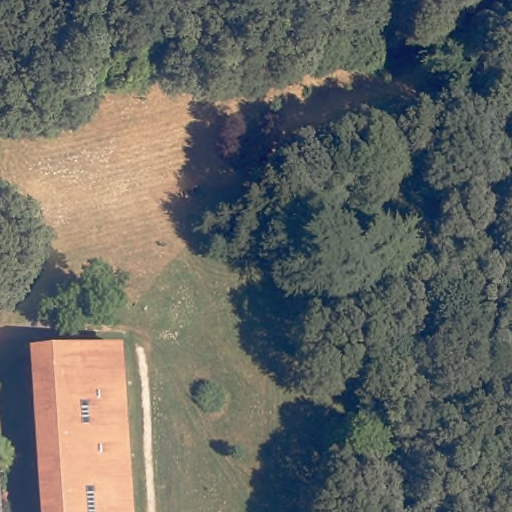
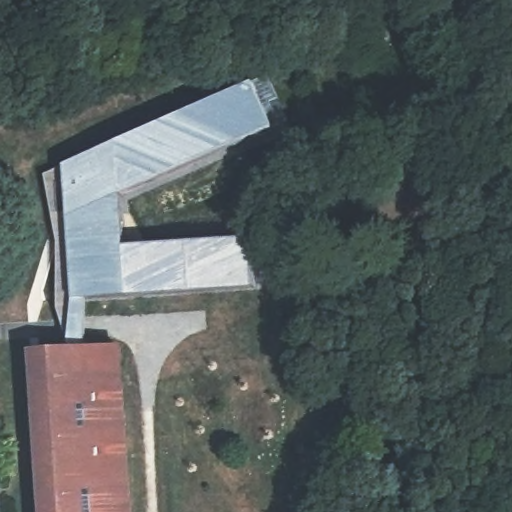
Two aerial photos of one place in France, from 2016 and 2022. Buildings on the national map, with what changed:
new [(66,300),(56,300),(58,240),(45,175),(64,166),(254,84),(270,76),(290,122),(275,129),(122,196),(126,246),(249,237),(256,290),(89,299),(66,300)]
unchanged [(38,398),(36,377),(35,359),(81,355),(116,352),(130,512),(46,512),(38,398)]
unchanged [(0,459),(5,512),(0,512),(0,459)]

